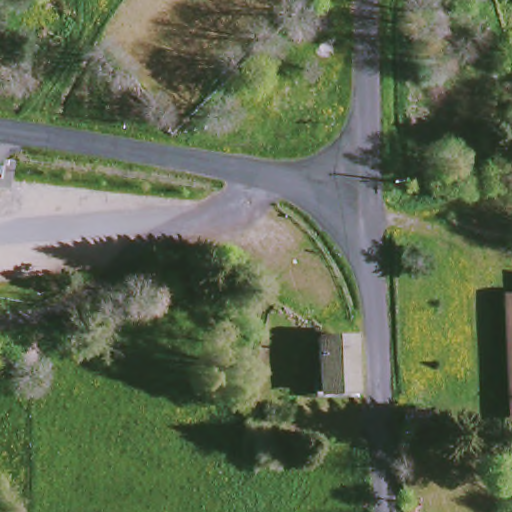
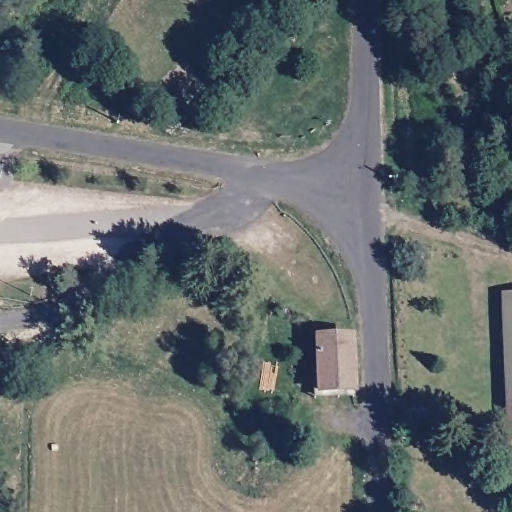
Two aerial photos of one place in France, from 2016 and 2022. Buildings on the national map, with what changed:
unchanged [(505,295),(512,295),(512,355),(506,355),(505,295)]
unchanged [(318,392),(314,336),(348,337),(351,392),(318,392)]
unchanged [(512,355),(512,422),(507,422),(506,355),(512,355)]
unchanged [(420,413),(442,414),(441,432),(420,431),(420,413)]

